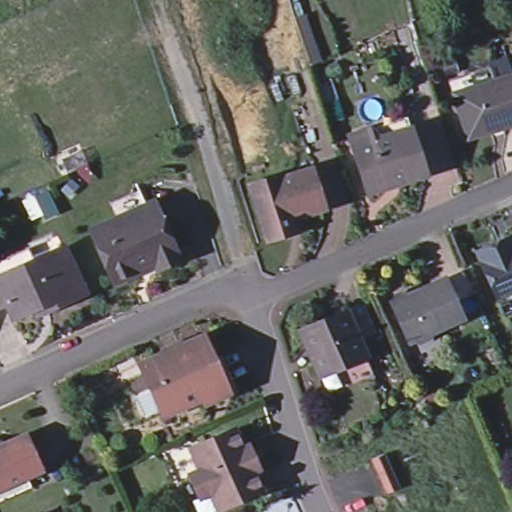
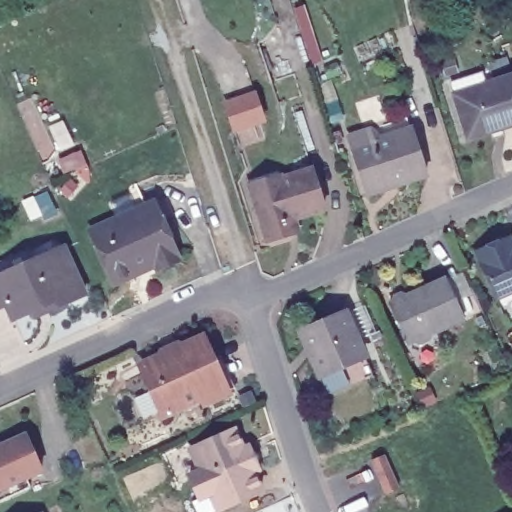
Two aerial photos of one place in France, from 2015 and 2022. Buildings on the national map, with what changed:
unchanged [(467,135),(455,94),(452,83),(491,71),(495,81),(512,76),(512,126),(501,130),(469,140),(467,135)]
new [(256,90),(267,122),(233,133),(223,101),(256,90)]
unchanged [(420,178),(363,196),(348,150),(345,139),(365,131),(370,143),(405,131),(420,178)]
unchanged [(287,229),(263,236),(250,193),(247,182),(277,172),(278,176),(308,166),(320,204),(290,214),(293,226),(287,229)]
unchanged [(117,222),(112,207),(138,195),(145,210),(154,206),(180,264),(157,274),(155,271),(115,289),(91,234),(117,222)]
unchanged [(504,240),(508,250),(512,248),(512,293),(493,302),(472,255),(495,244),(504,240)]
unchanged [(12,319),(6,305),(0,307),(0,263),(28,250),(34,263),(64,249),(84,295),(47,312),(34,318),(30,311),(12,319)]
unchanged [(389,303),(390,298),(397,296),(400,298),(440,280),(458,322),(426,336),(425,343),(415,347),(410,343),(404,346),(385,304),(389,303)]
unchanged [(320,387),(310,368),(290,324),(335,304),(355,348),(363,367),(320,387)]
unchanged [(158,353),(172,347),(180,349),(197,341),(219,389),(160,416),(138,368),(156,359),(158,353)]
unchanged [(187,449),(230,430),(238,450),(245,447),(255,469),(250,472),(257,490),(214,509),(207,493),(195,498),(185,476),(197,471),(187,449)]
unchanged [(36,472),(0,488),(0,444),(20,436),(36,472)]
unchanged [(394,471),(409,506),(397,511),(382,476),(394,471)]

